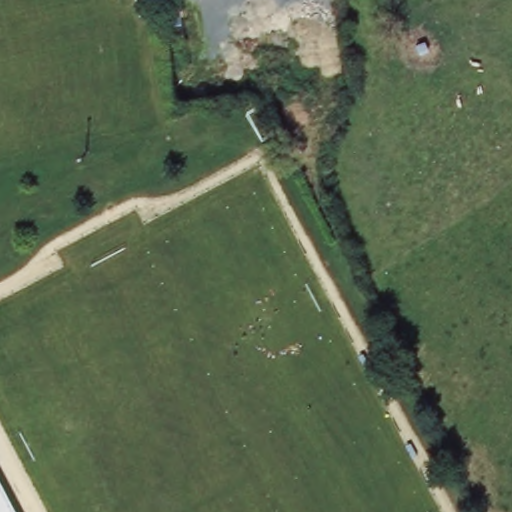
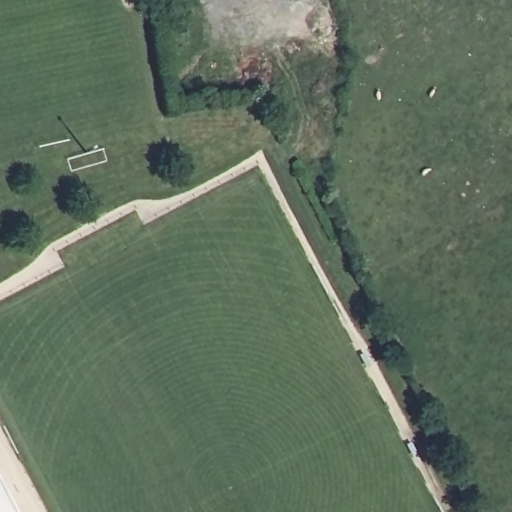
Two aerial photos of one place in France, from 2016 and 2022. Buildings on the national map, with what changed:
unchanged [(180,30),(180,45),(165,44),(165,39),(164,30),(180,30)]
unchanged [(0,512),(0,479),(17,512),(0,512)]

